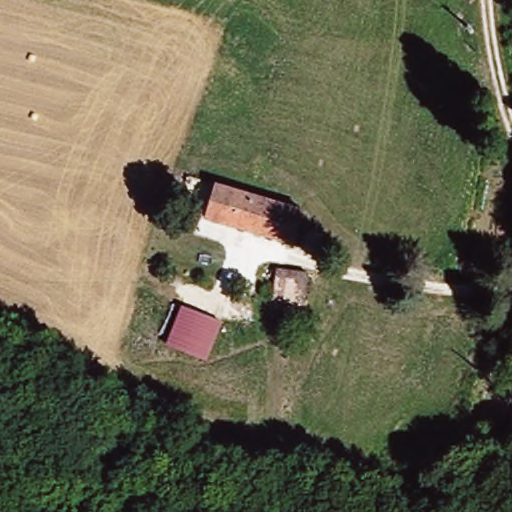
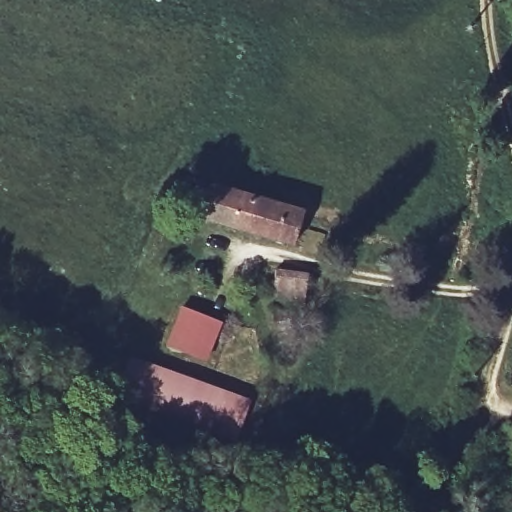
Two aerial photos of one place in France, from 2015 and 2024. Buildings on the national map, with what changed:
unchanged [(312,214),(303,247),(194,216),(203,183),(312,214)]
unchanged [(262,267),(309,275),(300,307),(272,302),(260,287),(262,267)]
unchanged [(223,323),(208,362),(166,346),(182,307),(223,323)]
new [(131,356),(252,399),(237,442),(116,398),(121,383),(131,356)]

